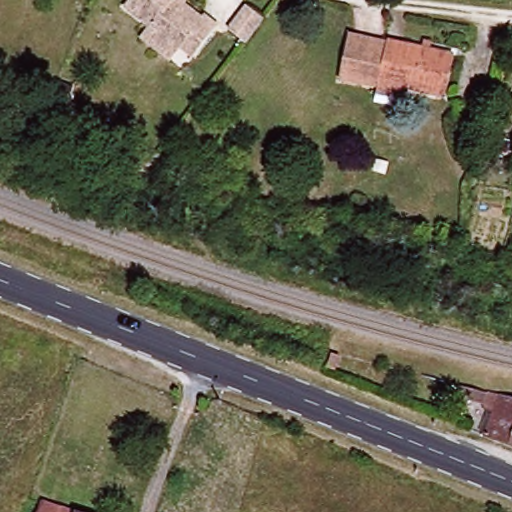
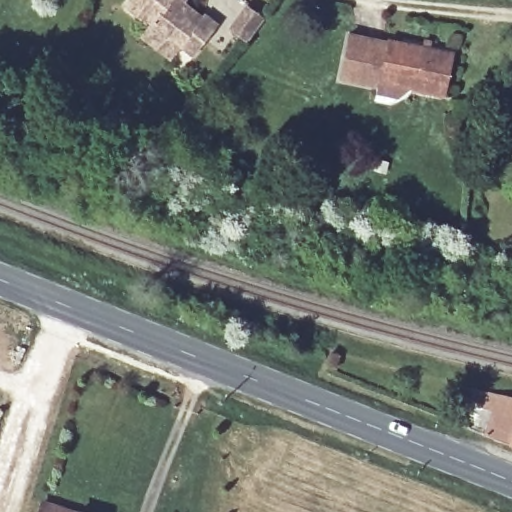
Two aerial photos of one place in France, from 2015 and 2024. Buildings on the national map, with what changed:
unchanged [(141,35),(145,31),(150,25),(126,5),(130,0),(187,0),(188,1),(185,4),(202,19),(205,15),(219,26),(215,30),(193,57),(181,47),(170,59),(141,35)]
unchanged [(246,43),(230,30),(248,8),(263,21),(246,43)]
unchanged [(376,96),(377,89),(339,81),(348,36),(386,44),(387,42),(453,55),(445,97),(410,90),(396,100),(376,96)]
unchanged [(335,370),(327,368),(331,354),(338,356),(335,370)]
unchanged [(488,436),(498,412),(487,408),(488,406),(462,398),(465,386),(491,393),(492,392),(505,395),(512,397),(512,445),(488,436)]
unchanged [(45,512),(47,503),(76,512),(45,512)]

